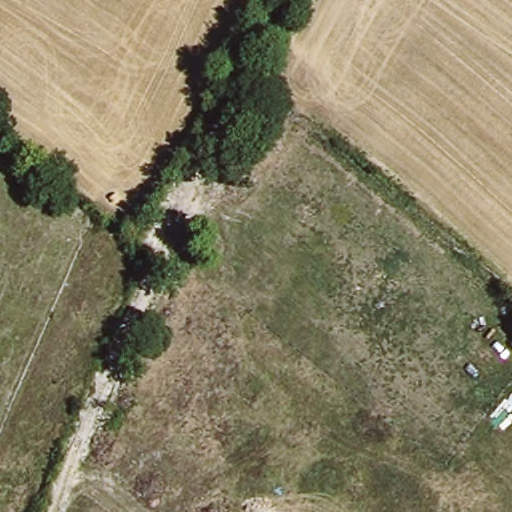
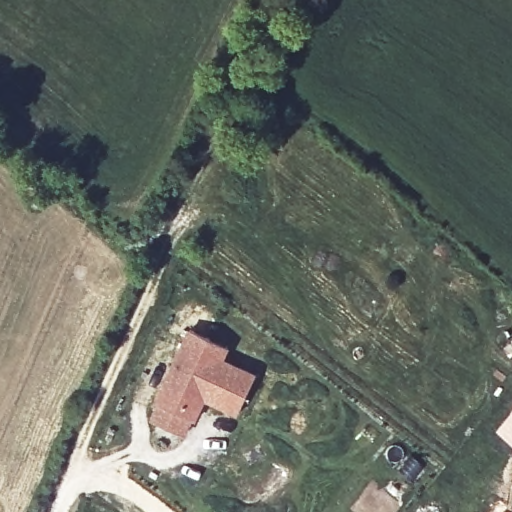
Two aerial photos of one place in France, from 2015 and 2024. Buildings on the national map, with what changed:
new [(240,413),(207,396),(196,418),(159,400),(195,327),(215,337),(232,346),(226,359),(259,375),(240,413)]

